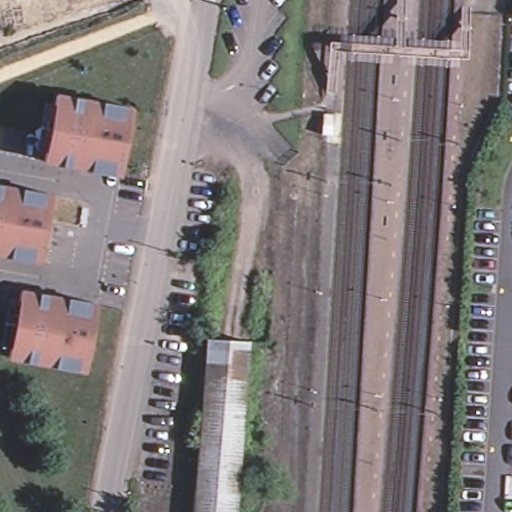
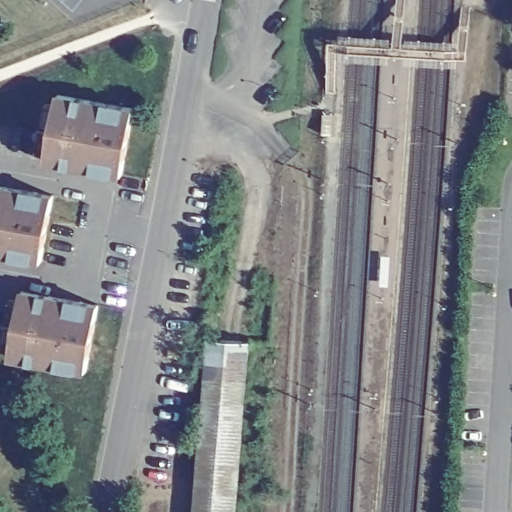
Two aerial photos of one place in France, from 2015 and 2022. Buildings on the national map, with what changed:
unchanged [(134,110),(122,176),(45,162),(57,96),(134,110)]
unchanged [(42,263),(0,255),(0,187),(53,196),(42,263)]
unchanged [(98,306),(87,372),(9,358),(21,292),(98,306)]
unchanged [(195,468),(206,342),(212,342),(248,345),(238,471),(235,512),(192,512),(195,468)]

